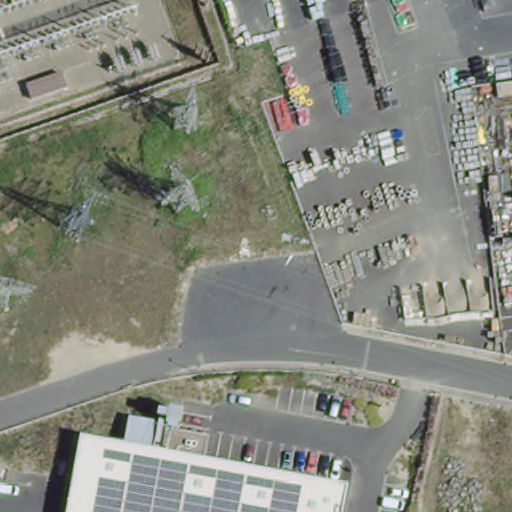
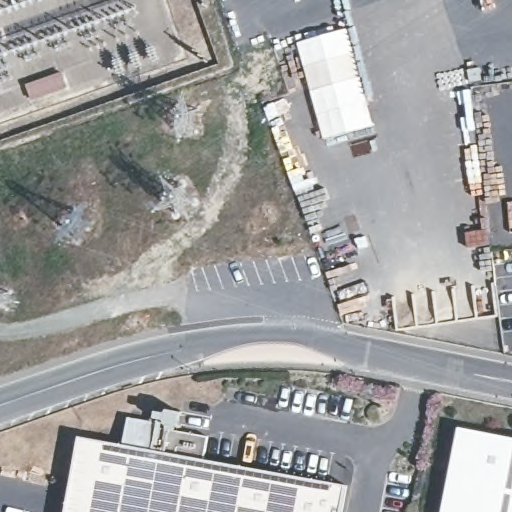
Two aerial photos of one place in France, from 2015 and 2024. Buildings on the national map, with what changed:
new [(346,29),(373,125),(323,139),(297,43),(346,29)]
new [(63,73),(68,88),(33,99),(29,84),(63,73)]
unchanged [(83,434),(127,442),(130,417),(156,420),(159,408),(185,410),(181,428),(167,425),(163,449),(353,485),(347,512),(69,512),(83,434)]
new [(512,438),(512,512),(442,512),(459,427),(512,438)]

